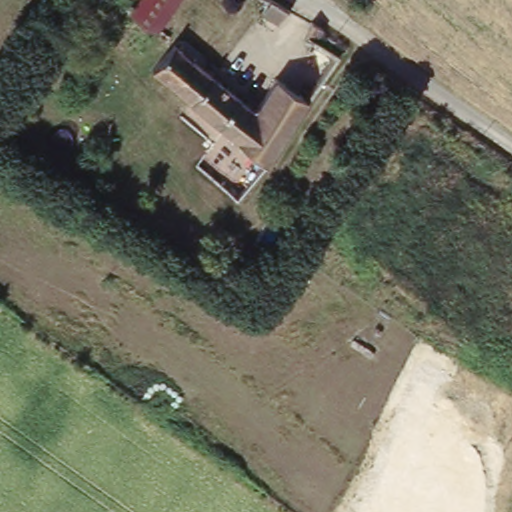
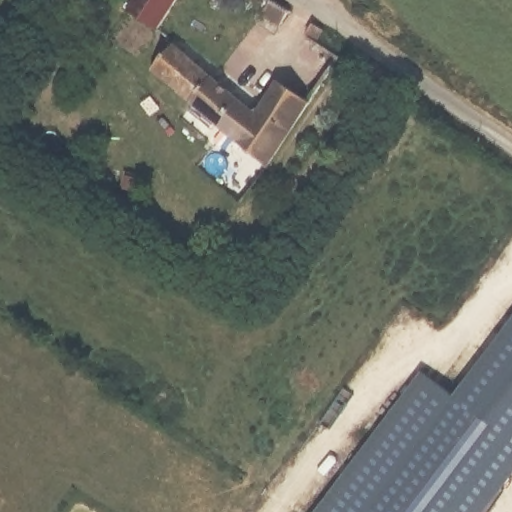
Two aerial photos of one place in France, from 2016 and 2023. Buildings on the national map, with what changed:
unchanged [(131,12),(139,0),(176,0),(155,29),(131,12)]
unchanged [(270,3),(288,13),(283,21),(266,11),(270,3)]
unchanged [(307,45),(319,28),(349,47),(334,65),(307,45)]
unchanged [(174,47),(258,111),(279,84),(312,106),(303,120),(281,149),(269,166),(156,73),(174,47)]
new [(429,364),(461,389),(512,326),(512,477),(485,512),(316,512),(429,364)]

